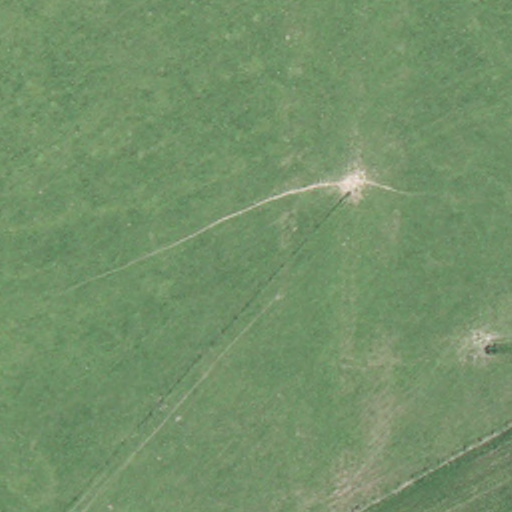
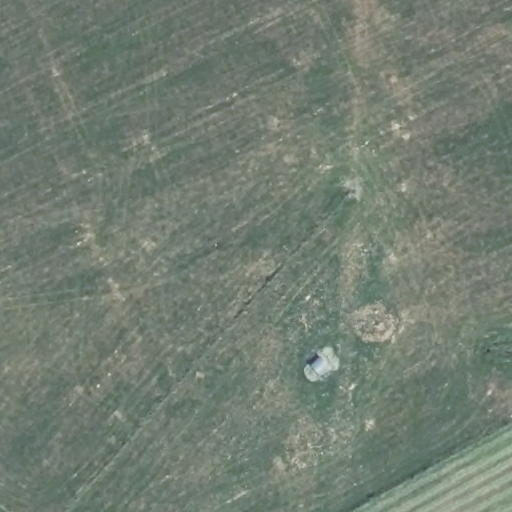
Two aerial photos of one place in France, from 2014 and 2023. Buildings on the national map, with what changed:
[]

